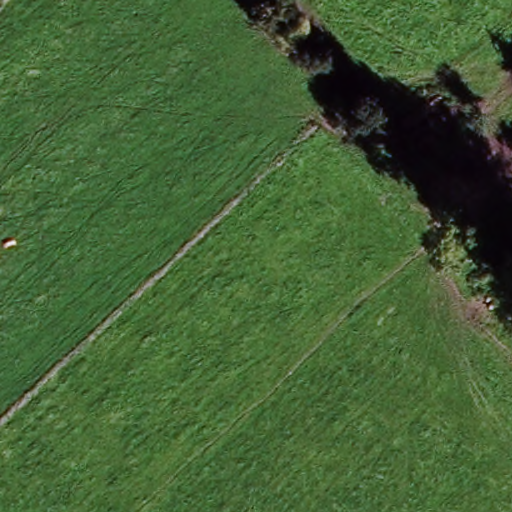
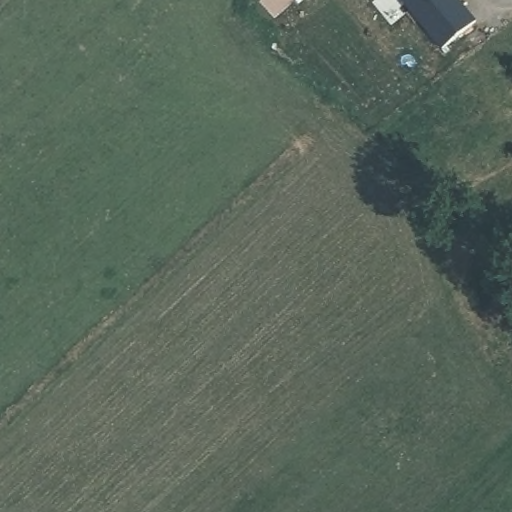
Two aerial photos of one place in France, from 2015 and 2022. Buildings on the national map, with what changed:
new [(401,0),(460,0),(477,21),(442,50),(401,0)]

